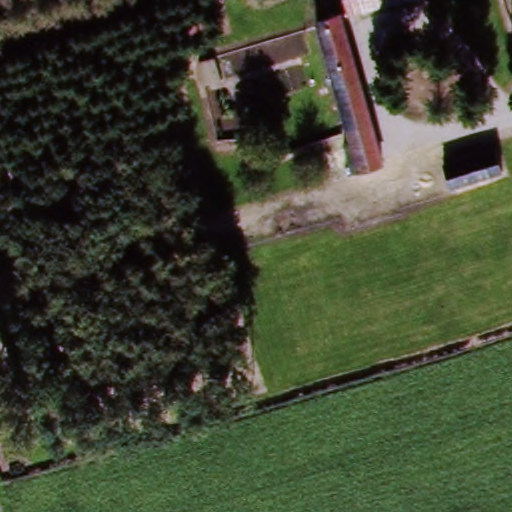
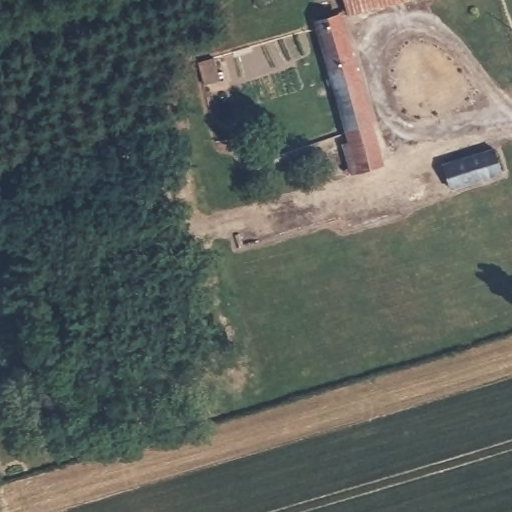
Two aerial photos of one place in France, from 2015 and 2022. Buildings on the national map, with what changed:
unchanged [(339,0),(417,0),(346,22),(339,0)]
unchanged [(344,26),(392,172),(361,182),(314,36),(344,26)]
unchanged [(443,173),(492,150),(502,174),(454,197),(443,173)]

